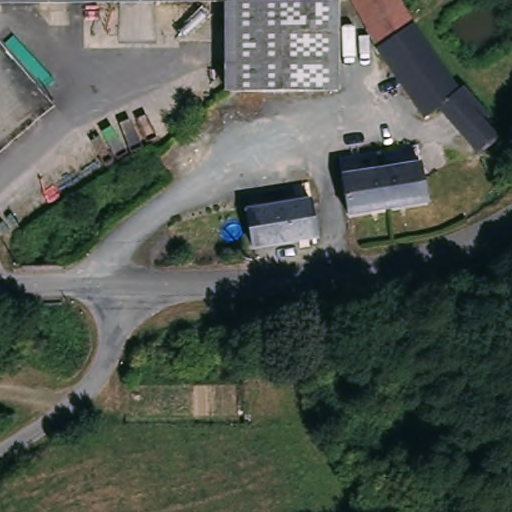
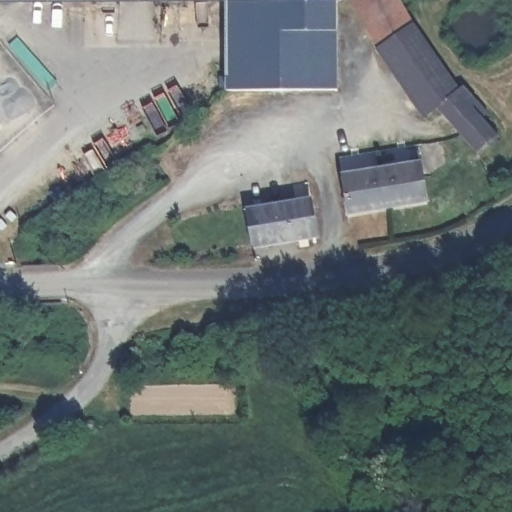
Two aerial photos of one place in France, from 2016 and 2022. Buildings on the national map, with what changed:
unchanged [(335,52),(336,65),(336,89),(311,89),(232,88),(229,88),(228,0),(334,0),(335,52)]
unchanged [(451,123),(437,130),(375,39),(370,30),(354,0),(408,0),(422,25),(472,104),(477,102),(480,105),(501,140),(497,147),(477,159),(451,123)]
unchanged [(353,210),(351,167),(425,165),(426,202),(353,210)]
unchanged [(65,201),(48,212),(36,197),(54,185),(65,201)]
unchanged [(321,240),(253,242),(252,206),(318,204),(321,240)]

